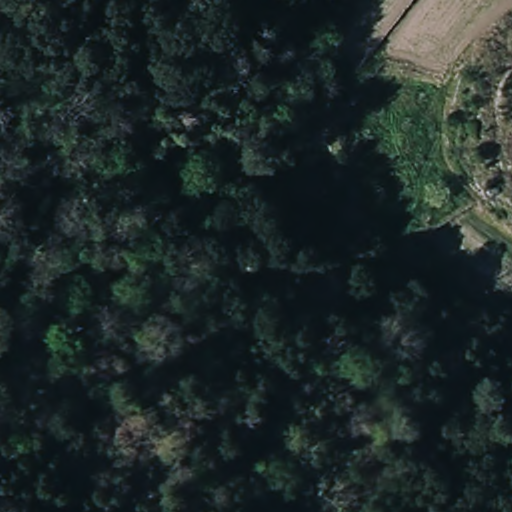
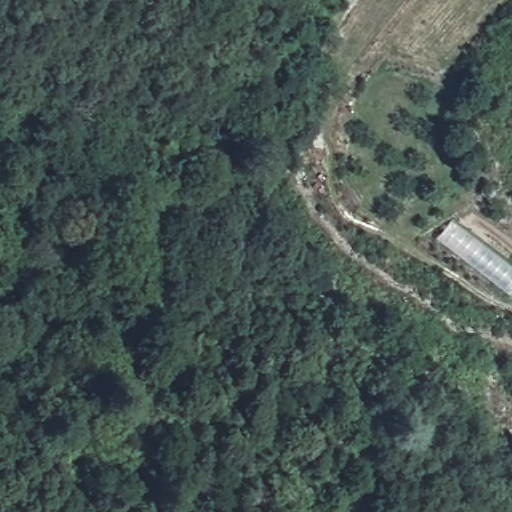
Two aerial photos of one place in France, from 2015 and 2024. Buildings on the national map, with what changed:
new [(438,241),(453,223),(512,269),(512,294),(510,297),(438,241)]

